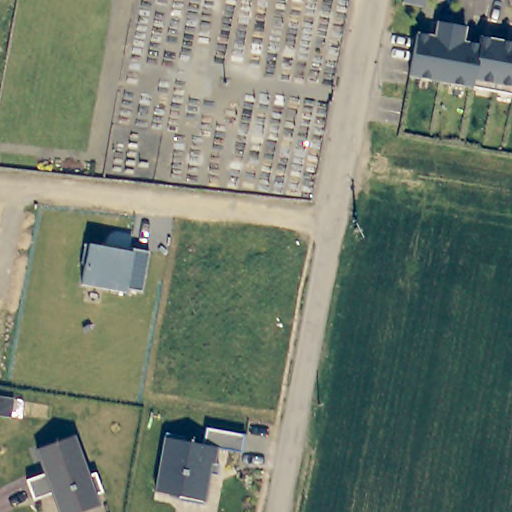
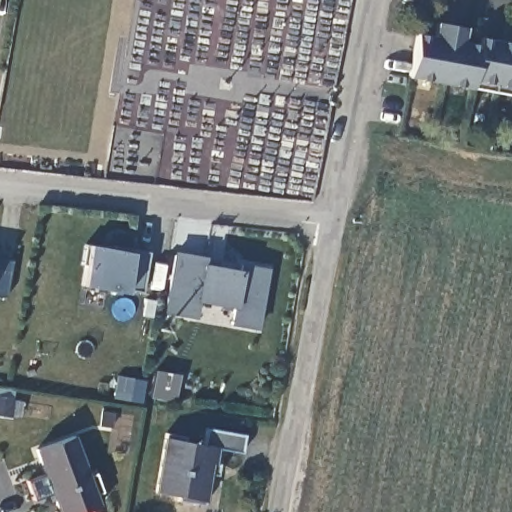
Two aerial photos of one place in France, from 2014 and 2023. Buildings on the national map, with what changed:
unchanged [(400,0),(420,0),(419,4),(400,0)]
unchanged [(434,20),(462,25),(460,39),(476,42),(477,35),(512,41),(512,90),(469,82),(469,85),(406,74),(414,31),(432,34),(434,20)]
unchanged [(127,290),(84,283),(90,245),(133,252),(133,249),(149,251),(142,291),(127,290)]
new [(163,313),(175,251),(219,260),(218,266),(239,270),(241,263),(269,269),(259,330),(230,325),(232,307),(198,301),(195,318),(163,313)]
unchanged [(164,431),(182,435),(182,440),(201,443),(204,426),(243,434),(239,451),(212,445),(209,461),(217,462),(215,475),(202,472),(201,478),(206,480),(201,504),(175,499),(176,495),(152,490),(164,431)]
unchanged [(93,473),(99,492),(93,495),(97,505),(75,512),(57,512),(50,492),(30,499),(24,480),(43,473),(35,449),(72,435),(82,465),(85,475),(93,473)]

